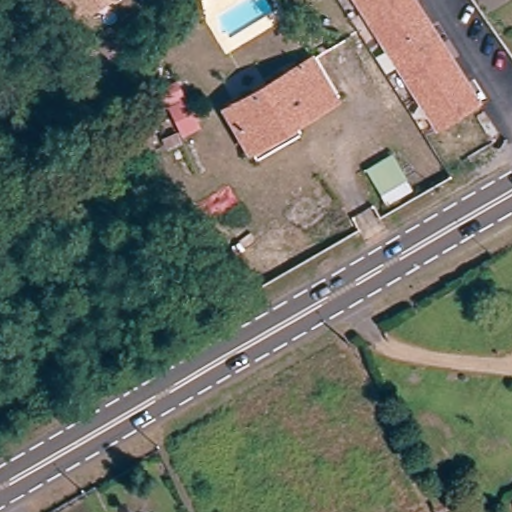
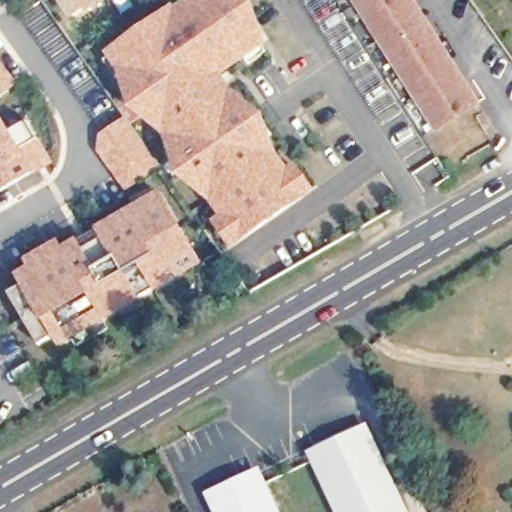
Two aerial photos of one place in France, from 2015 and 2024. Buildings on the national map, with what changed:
unchanged [(68,21),(55,0),(108,0),(68,21)]
new [(255,1),(270,44),(225,75),(233,87),(267,114),(278,151),(289,167),(297,161),(317,191),(233,250),(214,220),(220,216),(210,200),(179,175),(163,132),(131,108),(119,71),(106,52),(175,3),(178,6),(187,0),(253,0),(255,1)]
unchanged [(358,0),(390,0),(367,14),(358,0)]
unchanged [(367,14),(390,0),(414,0),(444,47),(404,73),(367,14)]
new [(0,79),(0,46),(5,54),(15,68),(8,73),(0,79)]
unchanged [(481,106),(441,132),(404,73),(444,47),(481,106)]
demolished [(333,104),(252,152),(229,111),(310,64),(333,104)]
new [(40,137),(55,162),(36,174),(0,195),(0,123),(6,119),(12,129),(28,121),(38,138),(40,137)]
new [(106,134),(130,119),(151,149),(164,167),(131,190),(104,152),(106,134)]
demolished [(364,168),(394,151),(416,191),(386,206),(364,168)]
new [(59,338),(44,347),(14,294),(29,286),(24,277),(84,243),(104,231),(164,195),(199,256),(204,265),(188,275),(144,300),(124,312),(64,347),(59,338)]
new [(314,446),(368,421),(369,425),(411,512),(345,512),(317,450),(314,446)]
new [(214,492),(264,468),(267,473),(285,512),(223,512),(217,497),(214,492)]
unchanged [(440,512),(439,510),(446,505),(450,512),(440,512)]

